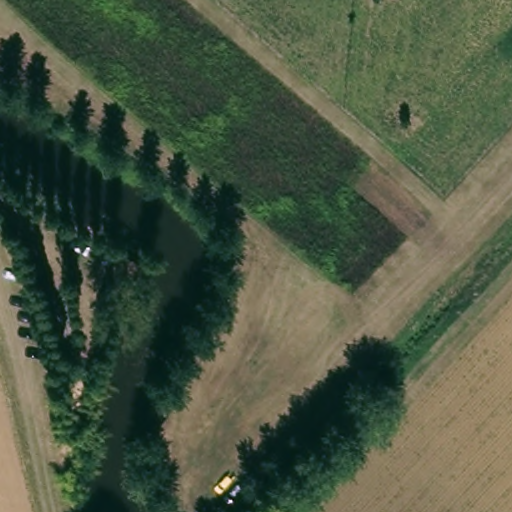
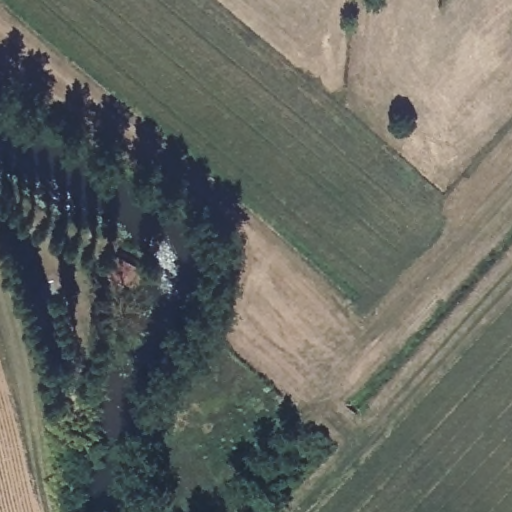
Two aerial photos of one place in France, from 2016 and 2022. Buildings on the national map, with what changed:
unchanged [(112,252),(144,265),(134,295),(104,278),(112,252)]

